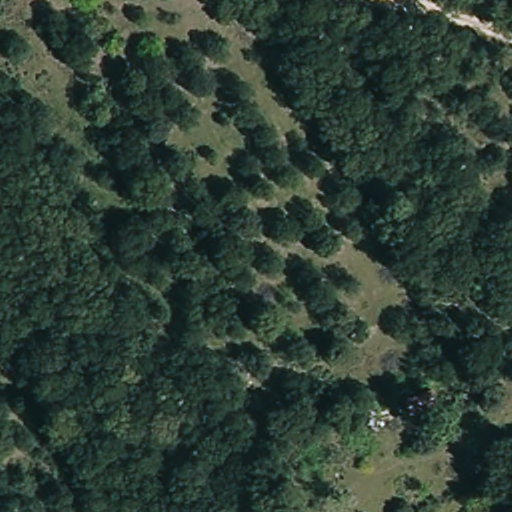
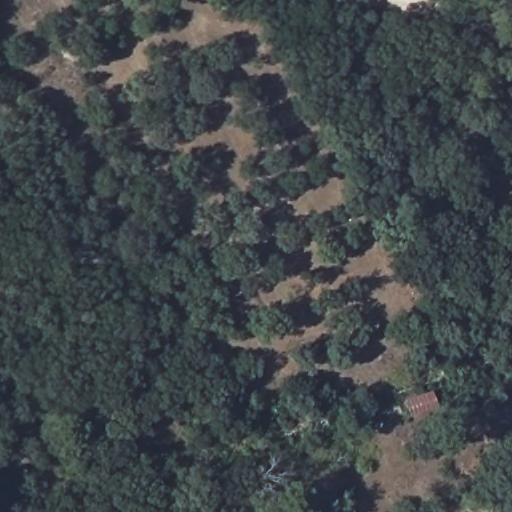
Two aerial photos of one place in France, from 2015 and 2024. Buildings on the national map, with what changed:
unchanged [(400,400),(437,388),(445,405),(407,418),(400,400)]

